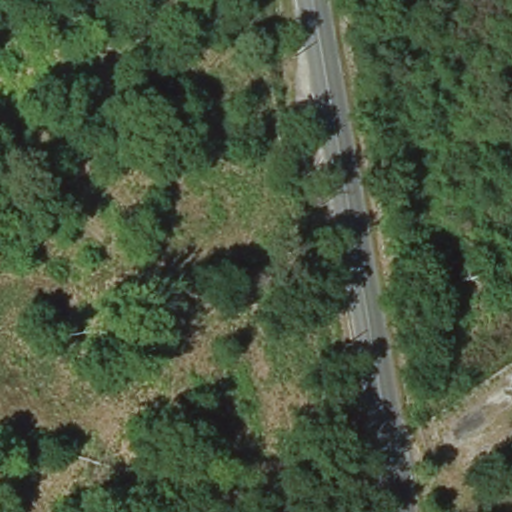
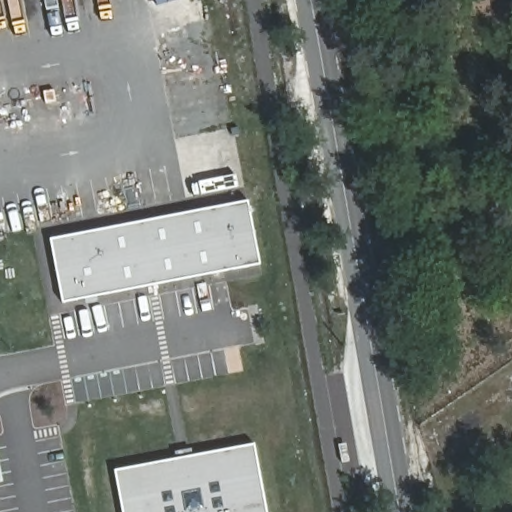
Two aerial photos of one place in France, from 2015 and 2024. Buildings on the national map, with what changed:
new [(64,302),(51,240),(248,201),(261,264),(64,302)]
new [(116,470),(256,445),(267,512),(123,512),(116,470)]

